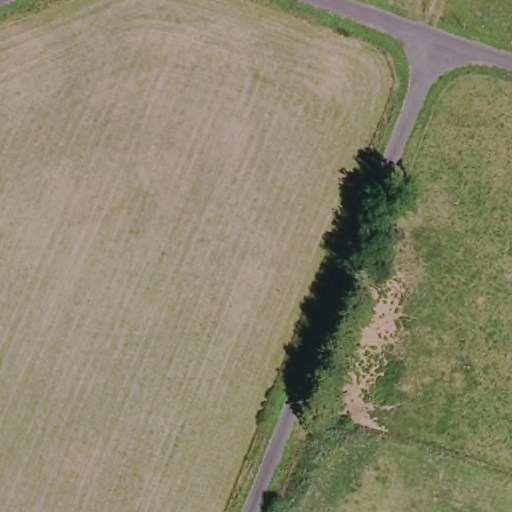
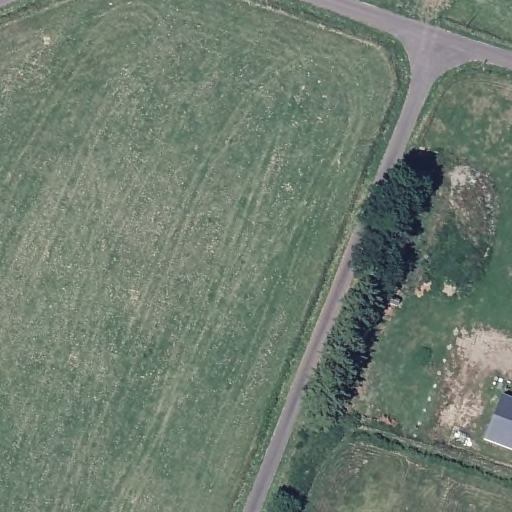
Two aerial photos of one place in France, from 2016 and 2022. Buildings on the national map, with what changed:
new [(497,395),(512,399),(512,451),(484,443),(497,395)]

